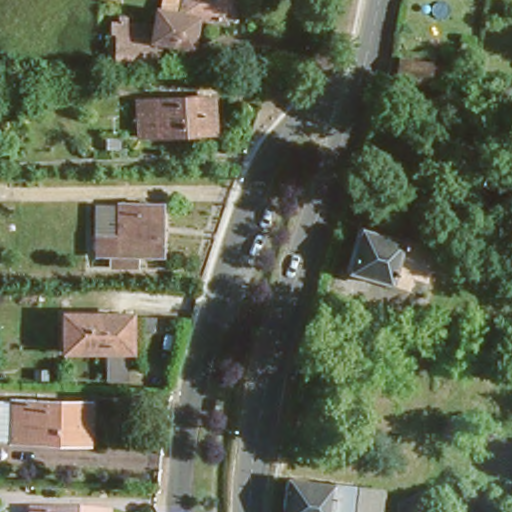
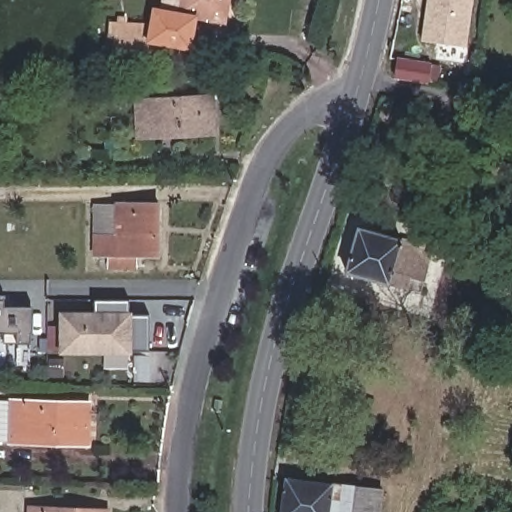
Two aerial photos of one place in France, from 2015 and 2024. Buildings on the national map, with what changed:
unchanged [(112,66),(112,57),(107,57),(107,29),(109,29),(110,16),(149,19),(151,10),(157,2),(163,3),(164,0),(228,0),(225,17),(195,12),(189,42),(157,37),(156,65),(112,66)]
new [(426,0),(473,0),(467,47),(420,41),(426,0)]
unchanged [(427,83),(396,78),(398,59),(430,64),(427,83)]
unchanged [(282,94),(271,90),(275,79),(286,82),(282,94)]
unchanged [(75,101),(56,102),(56,87),(74,86),(75,101)]
unchanged [(215,132),(137,137),(136,101),(212,96),(215,132)]
unchanged [(509,192),(476,183),(482,157),(512,165),(512,181),(509,192)]
unchanged [(154,236),(142,236),(142,250),(132,250),(132,262),(106,262),(106,250),(90,249),(90,230),(90,199),(112,199),(154,199),(154,236)]
unchanged [(422,281),(410,277),(407,288),(347,271),(358,228),(432,247),(422,281)]
new [(16,334),(0,334),(0,301),(4,301),(5,308),(32,308),(32,344),(16,343),(16,334)]
unchanged [(130,352),(62,352),(62,313),(130,313),(130,352)]
unchanged [(5,437),(0,436),(0,395),(6,396),(84,397),(83,439),(5,437)]
unchanged [(329,512),(281,506),(287,464),(382,476),(378,512),(329,512)]
unchanged [(24,512),(25,502),(103,505),(103,512),(24,512)]
unchanged [(280,512),(281,506),(329,512),(280,512)]

